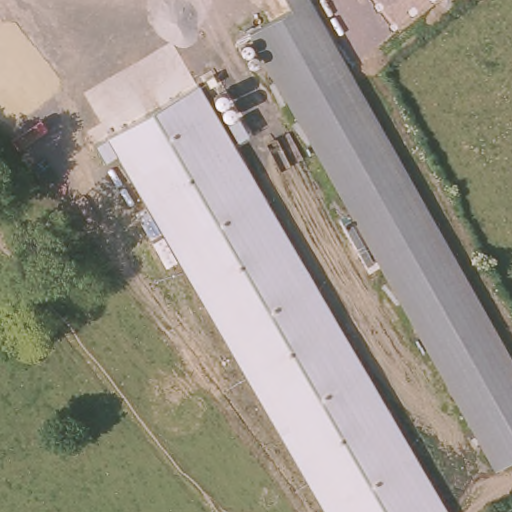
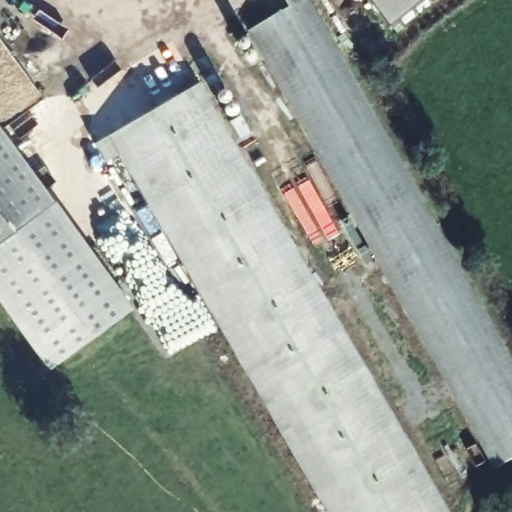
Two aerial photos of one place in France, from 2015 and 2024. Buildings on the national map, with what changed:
unchanged [(253,33),(292,10),(286,0),(308,0),(512,353),(512,463),(505,467),(253,33)]
unchanged [(370,0),(436,0),(395,33),(370,0)]
unchanged [(117,155),(105,161),(95,144),(197,84),(448,512),(325,512),(117,155)]
new [(0,130),(54,203),(132,310),(48,372),(0,305),(0,130)]

